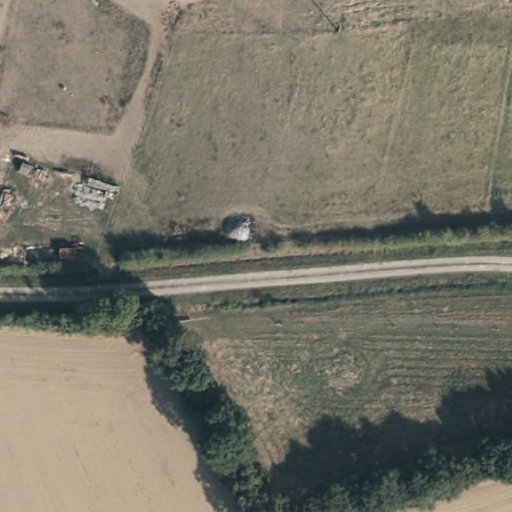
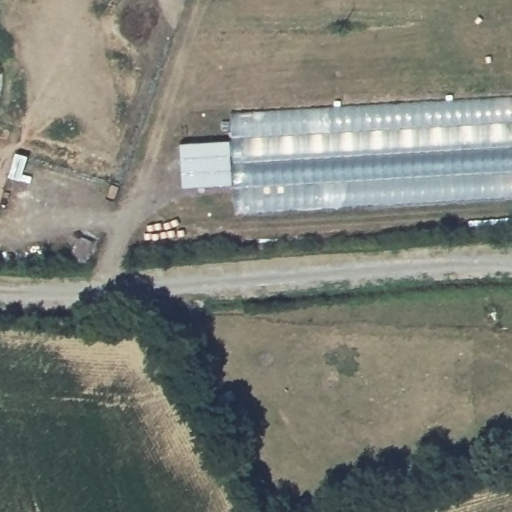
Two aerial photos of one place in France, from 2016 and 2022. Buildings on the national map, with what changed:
new [(512,196),(234,212),(233,184),(230,140),(228,112),(512,95),(512,196)]
new [(178,143),(230,140),(233,184),(181,187),(178,143)]

